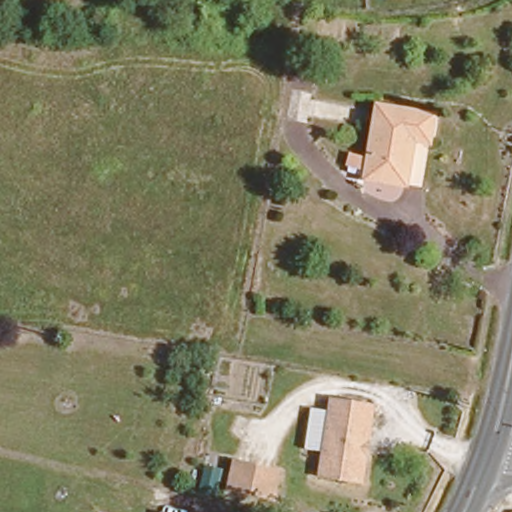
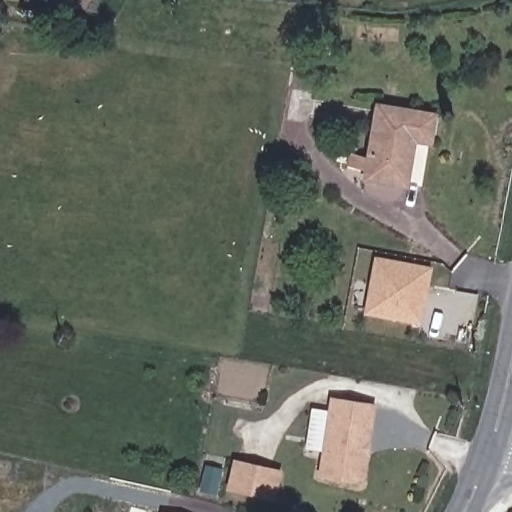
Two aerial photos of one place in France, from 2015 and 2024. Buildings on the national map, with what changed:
unchanged [(379,101),(380,100),(407,104),(436,109),(432,136),(414,134),(413,148),(408,178),(369,171),(352,168),(354,155),(371,157),(375,128),(379,101)]
new [(364,315),(375,259),(433,268),(422,326),(364,315)]
unchanged [(356,479),(316,475),(327,401),(367,404),(356,479)]
unchanged [(233,459),(281,470),(273,503),(223,493),(233,459)]

